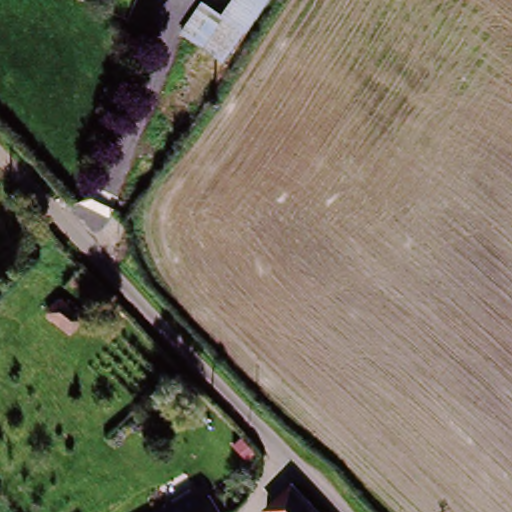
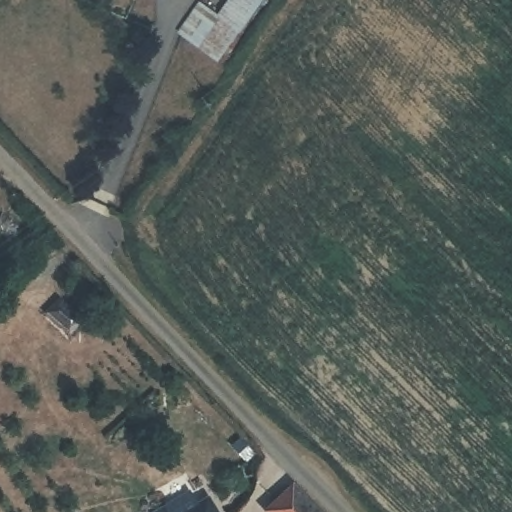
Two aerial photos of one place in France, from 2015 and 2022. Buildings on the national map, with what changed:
unchanged [(181,34),(199,8),(216,20),(225,0),(261,0),(241,39),(224,65),(205,51),(181,34)]
unchanged [(69,333),(44,310),(60,295),(84,318),(69,333)]
unchanged [(284,483),(311,512),(261,512),(258,508),(284,483)]

